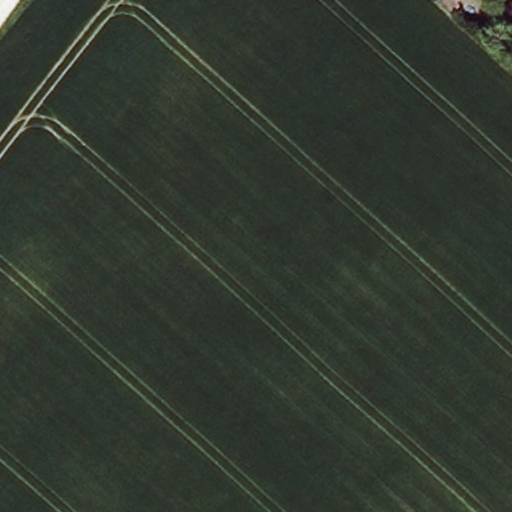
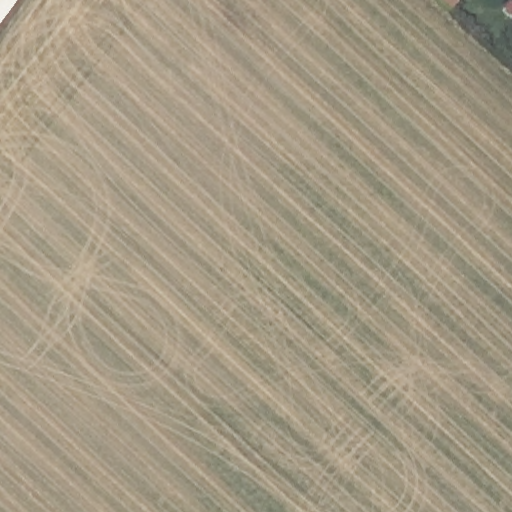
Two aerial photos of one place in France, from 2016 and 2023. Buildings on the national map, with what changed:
unchanged [(455,0),(458,3),(451,11),(439,0),(455,0)]

